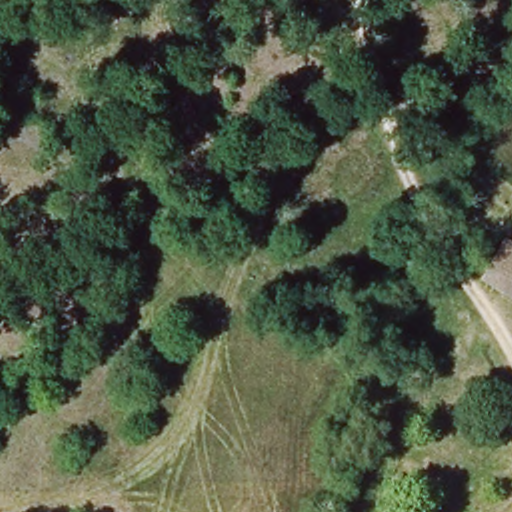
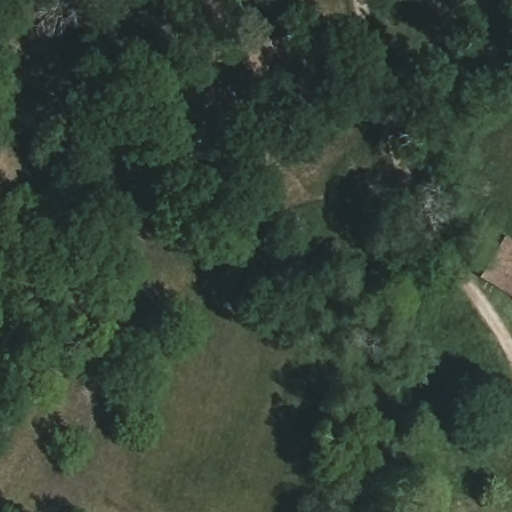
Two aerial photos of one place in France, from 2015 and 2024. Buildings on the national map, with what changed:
unchanged [(485,281),(507,239),(512,242),(512,301),(485,281)]

